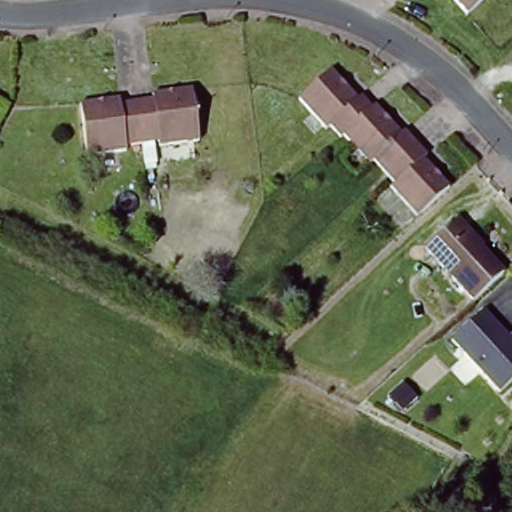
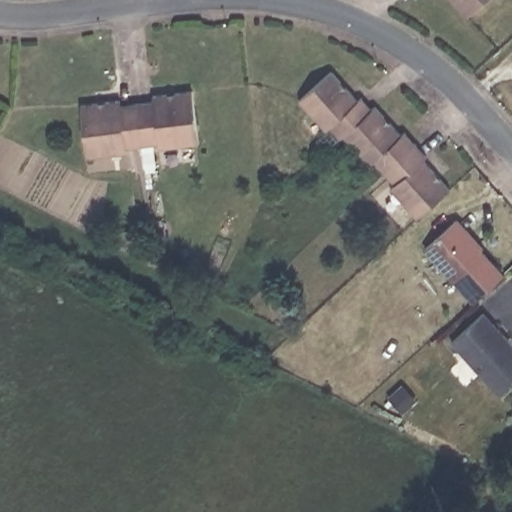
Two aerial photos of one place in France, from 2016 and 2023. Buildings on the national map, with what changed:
unchanged [(472,17),(457,0),(491,0),(472,17)]
unchanged [(359,102),(360,101),(362,100),(367,104),(373,112),(377,109),(397,133),(378,167),(376,166),(372,169),(345,139),(342,141),(332,129),(328,132),(302,102),(323,84),(334,75),(356,99),(359,102)]
unchanged [(195,94),(202,147),(162,152),(161,147),(145,149),(139,107),(155,105),(153,99),(195,94)]
unchanged [(122,104),(123,108),(139,107),(145,149),(139,150),(83,124),(81,108),(122,104)]
unchanged [(139,150),(128,151),(130,156),(88,160),(83,124),(139,150)]
unchanged [(430,162),(426,166),(453,196),(422,223),(394,193),(397,191),(378,167),(397,133),(403,139),(407,136),(430,162)]
unchanged [(476,246),(474,249),(497,273),(467,300),(418,245),(450,217),(476,246)]
unchanged [(512,354),(512,383),(493,399),(446,346),(479,316),(512,354)]

